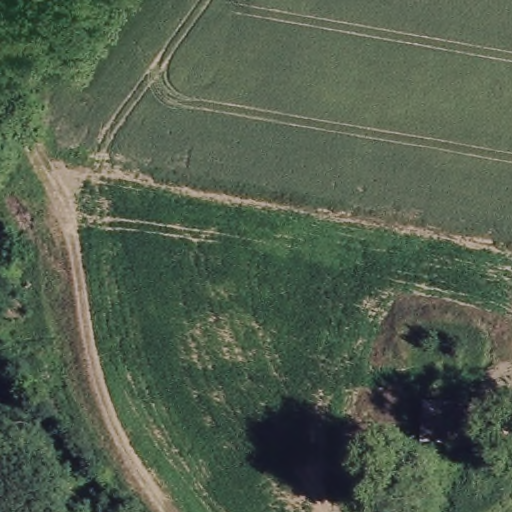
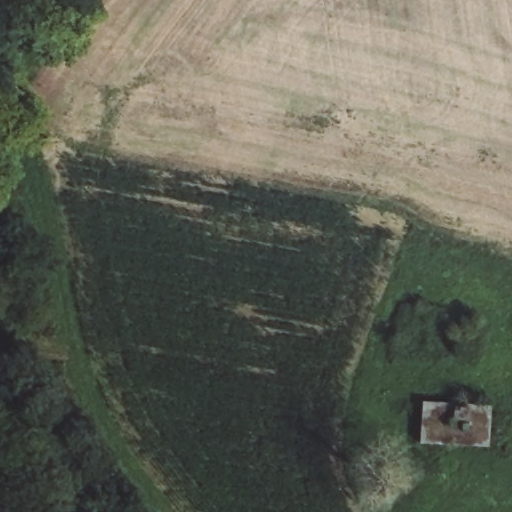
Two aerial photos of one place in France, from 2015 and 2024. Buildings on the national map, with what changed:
unchanged [(489,400),(484,447),(423,440),(428,395),(489,400)]

